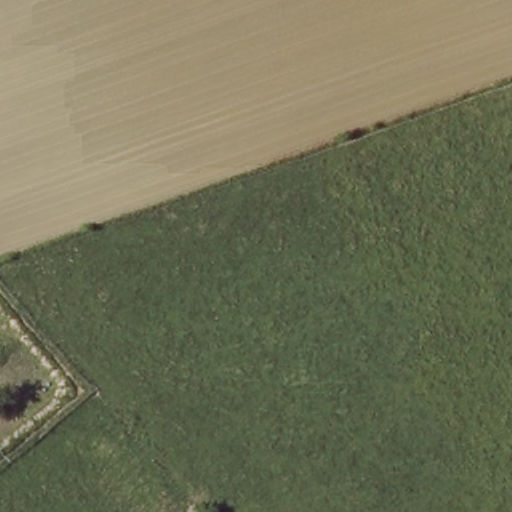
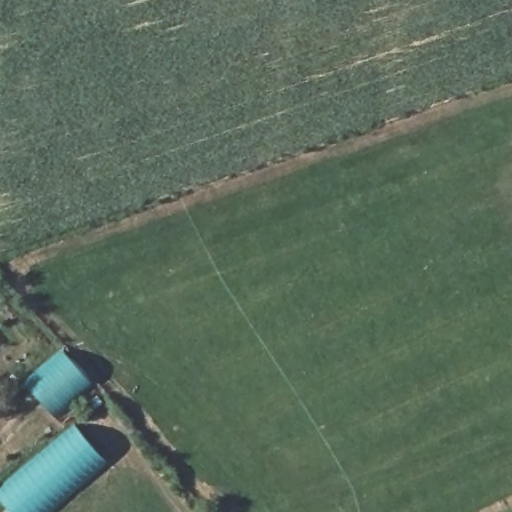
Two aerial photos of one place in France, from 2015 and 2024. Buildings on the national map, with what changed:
new [(77,425),(109,463),(52,512),(11,512),(0,499),(0,490),(77,425)]

